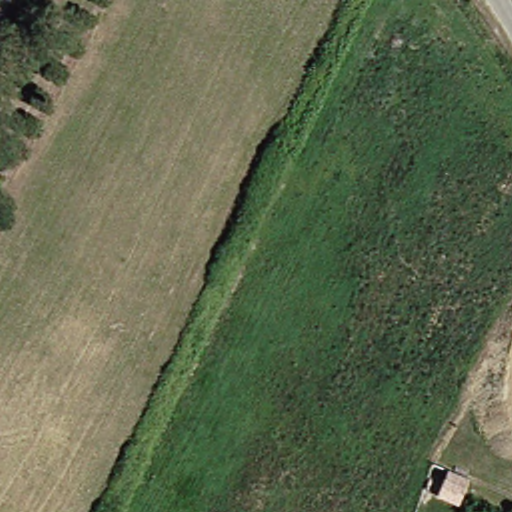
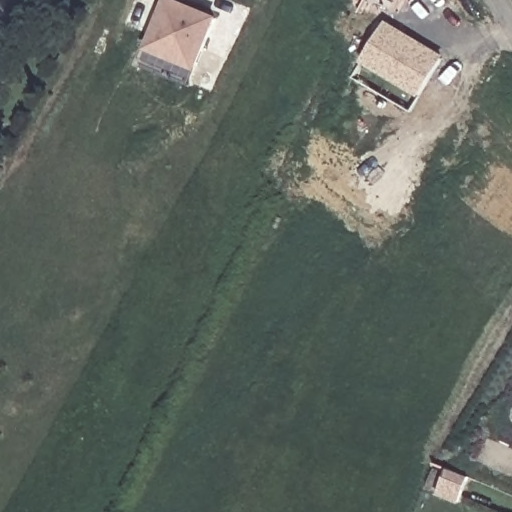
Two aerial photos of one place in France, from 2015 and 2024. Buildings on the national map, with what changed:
new [(161,0),(174,0),(212,16),(192,64),(143,44),(161,0)]
new [(363,61),(387,21),(445,56),(421,96),(363,61)]
new [(143,44),(192,64),(184,82),(136,62),(143,44)]
unchanged [(465,475),(457,491),(437,482),(443,466),(465,475)]

